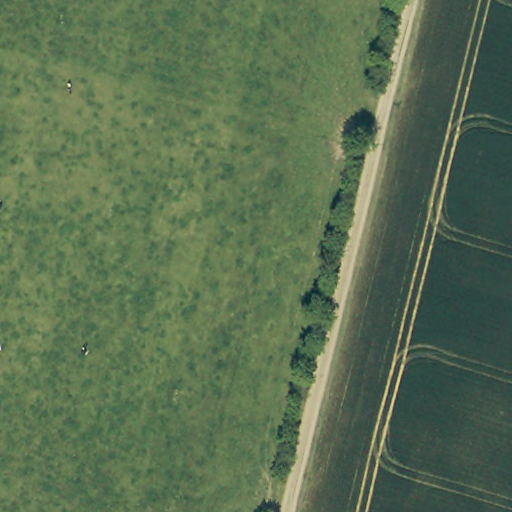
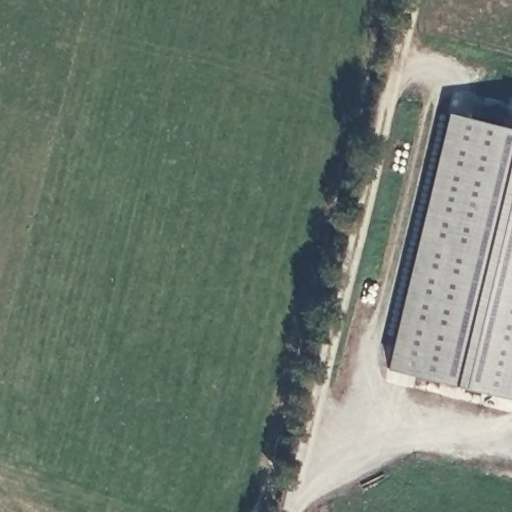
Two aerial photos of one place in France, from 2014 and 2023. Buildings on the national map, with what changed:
new [(512,399),(386,368),(447,114),(512,130),(512,399)]

